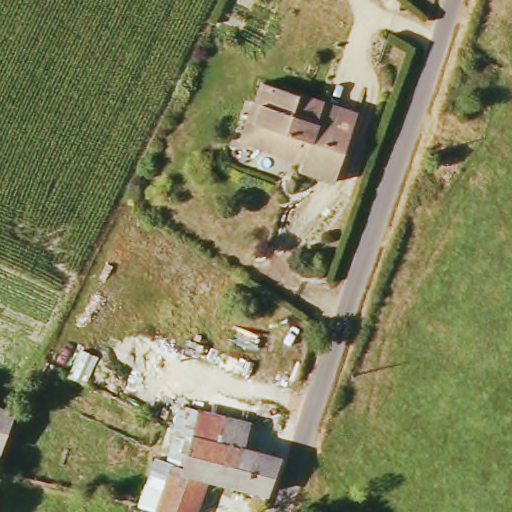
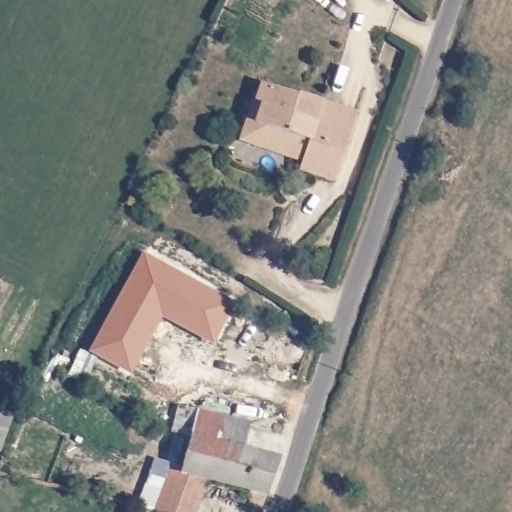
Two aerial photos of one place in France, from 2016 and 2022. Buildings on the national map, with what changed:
unchanged [(359,116),(336,183),(302,171),(306,156),(294,153),(294,159),(254,145),(243,143),(256,102),(264,83),(359,116)]
new [(93,350),(144,257),(232,304),(213,341),(172,319),(176,310),(165,304),(129,369),(93,350)]
unchanged [(0,425),(0,408),(6,410),(0,425)]
unchanged [(178,465),(183,441),(173,431),(178,415),(194,425),(198,411),(253,424),(248,447),(285,457),(273,495),(212,482),(200,512),(161,512),(178,465)]

